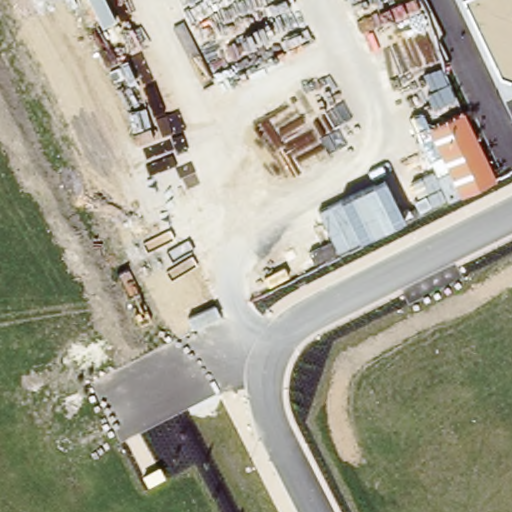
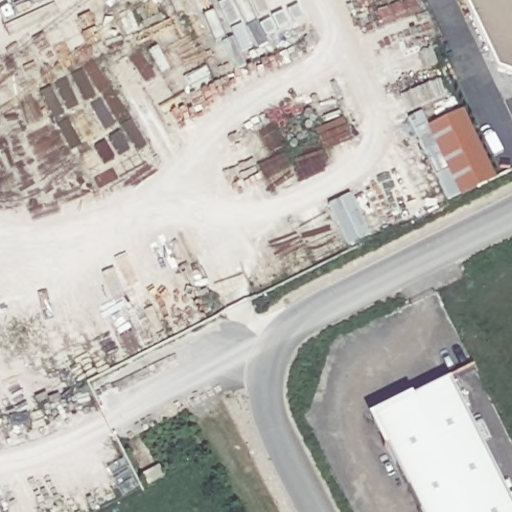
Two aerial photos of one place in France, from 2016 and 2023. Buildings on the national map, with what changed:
unchanged [(498,72),(463,0),(512,0),(512,77),(498,72)]
new [(448,201),(428,159),(417,164),(398,122),(423,111),(430,126),(461,196),(448,201)]
unchanged [(497,179),(461,196),(430,126),(462,111),(497,179)]
new [(383,448),(368,416),(411,394),(413,398),(450,380),(512,507),(512,512),(419,512),(387,448),(383,448)]

